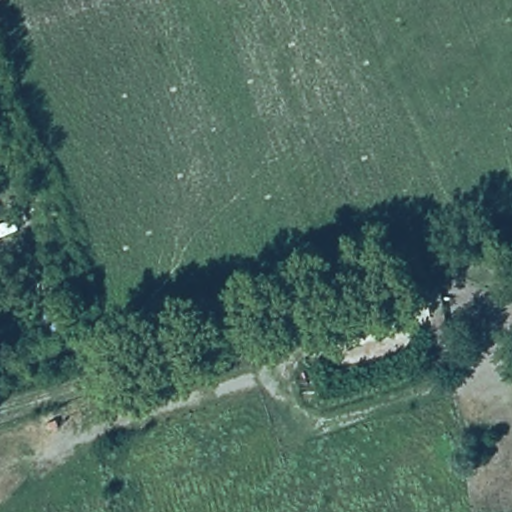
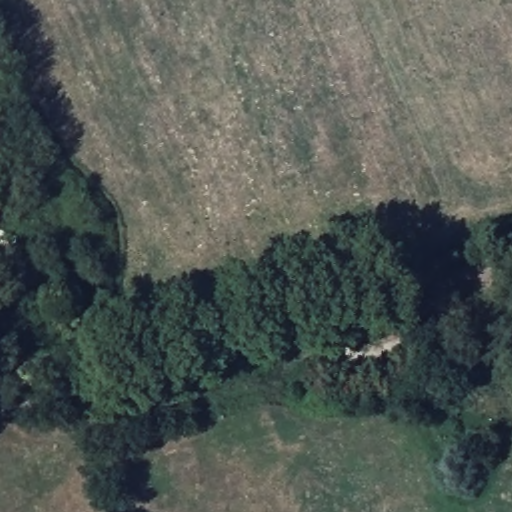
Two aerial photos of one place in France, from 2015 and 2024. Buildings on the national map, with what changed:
unchanged [(310,343),(306,324),(399,295),(404,313),(310,343)]

